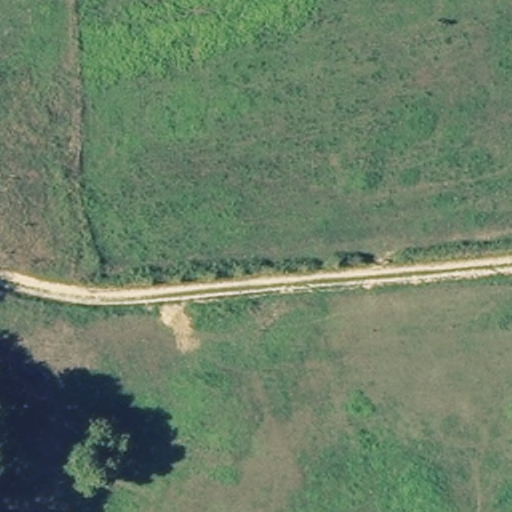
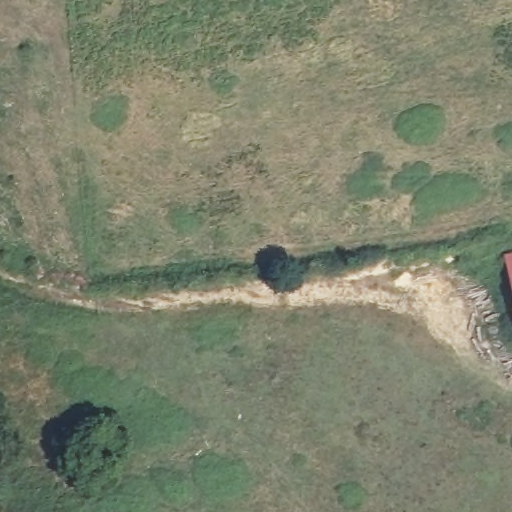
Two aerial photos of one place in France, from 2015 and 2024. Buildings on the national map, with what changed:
new [(504,255),(512,254),(512,292),(504,255)]

